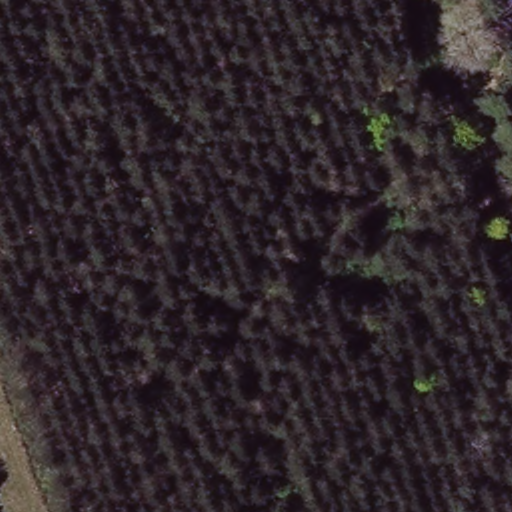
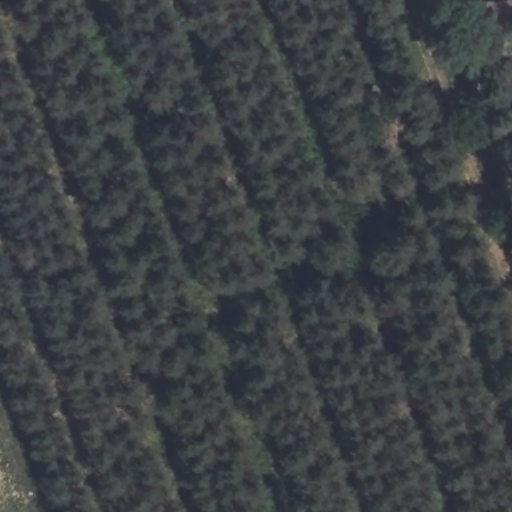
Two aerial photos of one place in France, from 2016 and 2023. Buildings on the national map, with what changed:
unchanged [(496,40),(494,5),(512,3),(512,39),(496,40)]

